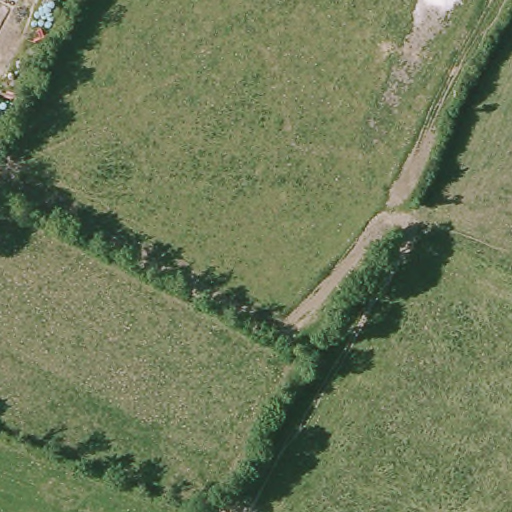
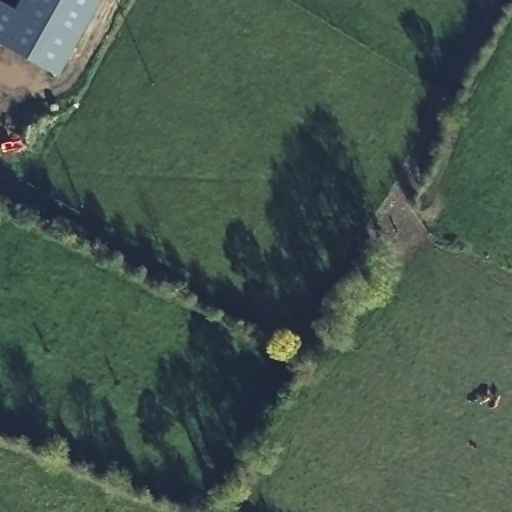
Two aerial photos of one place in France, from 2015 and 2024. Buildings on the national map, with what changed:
new [(15,8),(19,0),(103,0),(60,76),(0,47),(0,1),(15,8)]

